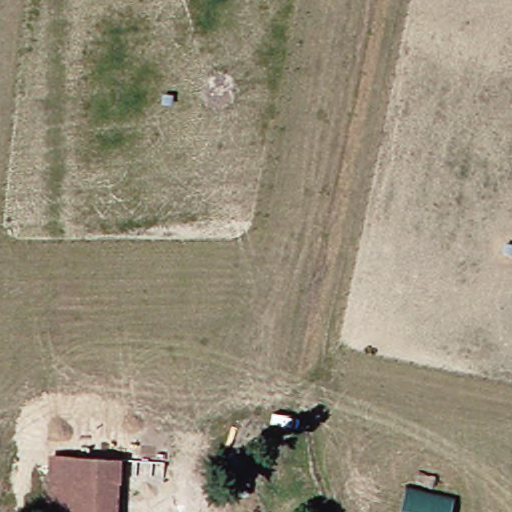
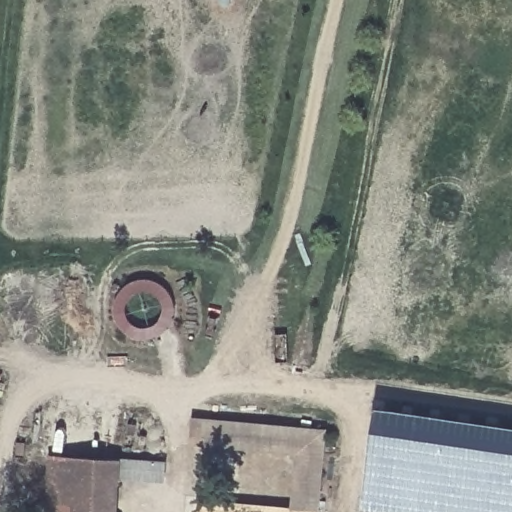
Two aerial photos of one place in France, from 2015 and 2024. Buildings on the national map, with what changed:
new [(512,424),(512,512),(398,512),(365,507),(380,404),(512,424)]
new [(198,497),(292,506),(297,454),(193,444),(194,415),(329,428),(321,512),(197,512),(198,497)]
unchanged [(52,508),(54,458),(123,459),(123,512),(52,512),(52,508)]

